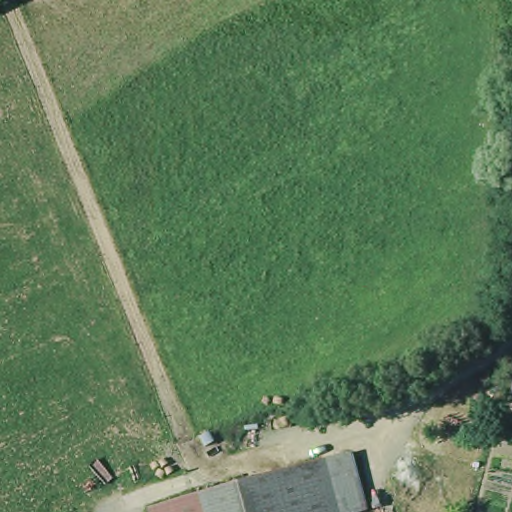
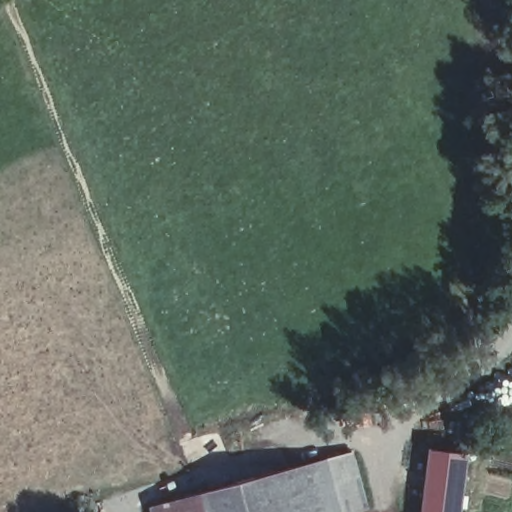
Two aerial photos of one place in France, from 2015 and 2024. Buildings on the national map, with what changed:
unchanged [(150,502),(327,456),(351,449),(362,491),(366,509),(353,512),(152,512),(150,502)]
new [(458,512),(419,512),(428,449),(466,452),(458,512)]

